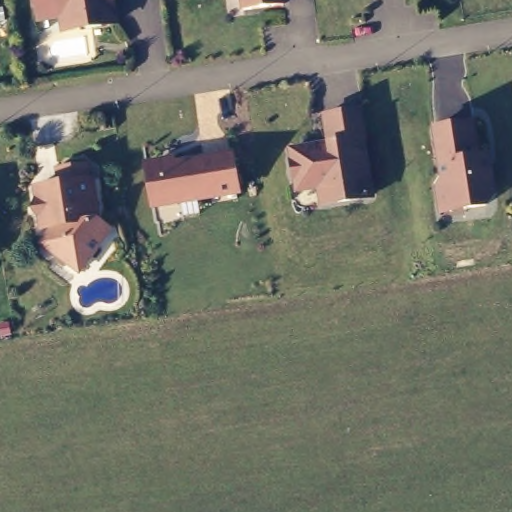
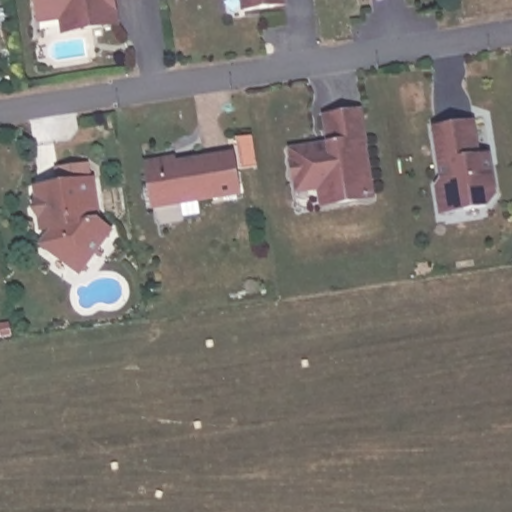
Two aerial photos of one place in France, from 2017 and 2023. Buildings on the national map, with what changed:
unchanged [(34,0),(114,0),(117,24),(57,32),(57,18),(37,21),(34,0)]
unchanged [(239,0),(283,0),(284,4),(240,11),(239,0)]
unchanged [(295,187),(294,176),(291,177),(287,158),(291,157),(289,147),(315,143),(315,146),(326,145),(321,113),(358,107),(362,137),(360,137),(369,194),(335,199),(320,201),(317,183),(295,187)]
unchanged [(437,210),(432,182),(440,177),(432,124),(473,116),(477,151),(491,151),(496,200),(437,210)]
unchanged [(144,166),(234,152),(240,194),(149,207),(144,166)]
unchanged [(97,220),(110,227),(77,272),(44,247),(55,237),(38,229),(35,188),(92,179),(97,220)]

